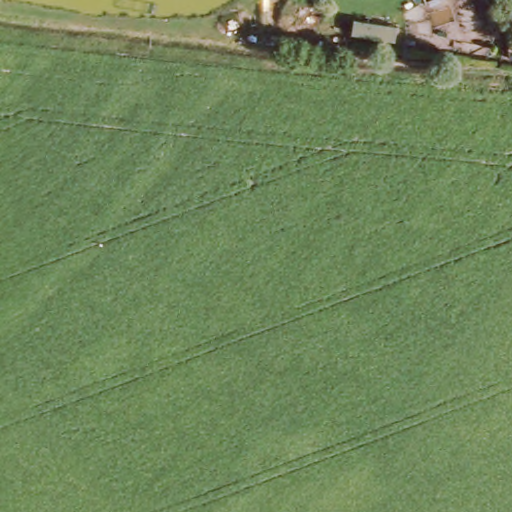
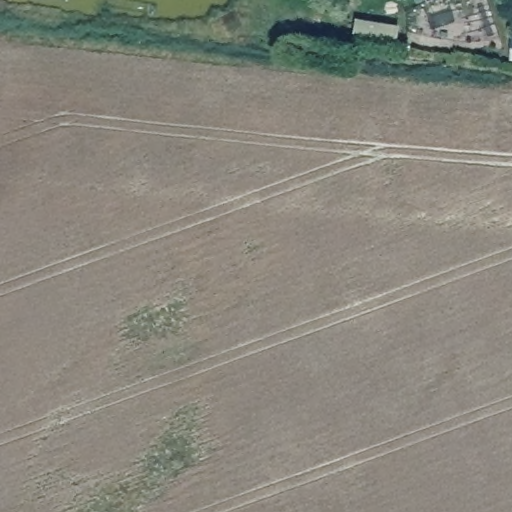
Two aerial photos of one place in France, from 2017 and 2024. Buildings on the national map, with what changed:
unchanged [(429,0),(436,0),(430,3),(429,0)]

